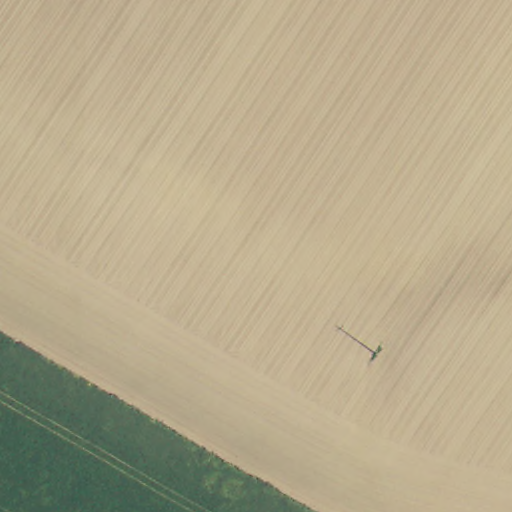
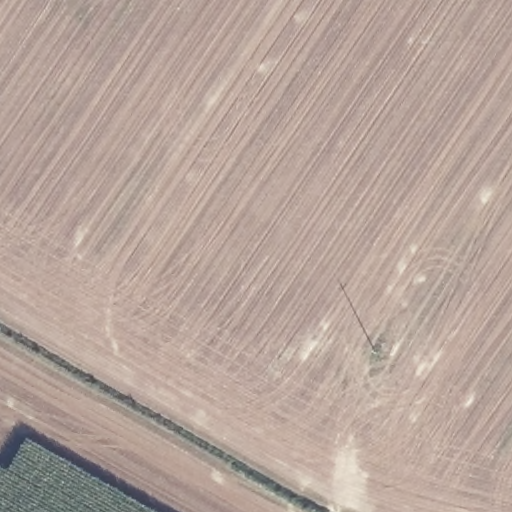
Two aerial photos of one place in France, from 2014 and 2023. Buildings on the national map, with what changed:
[]

